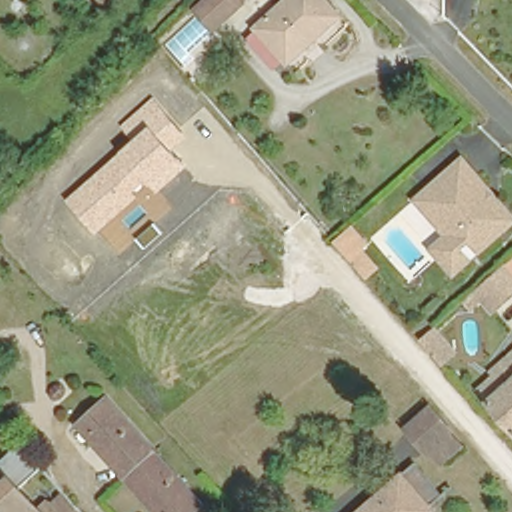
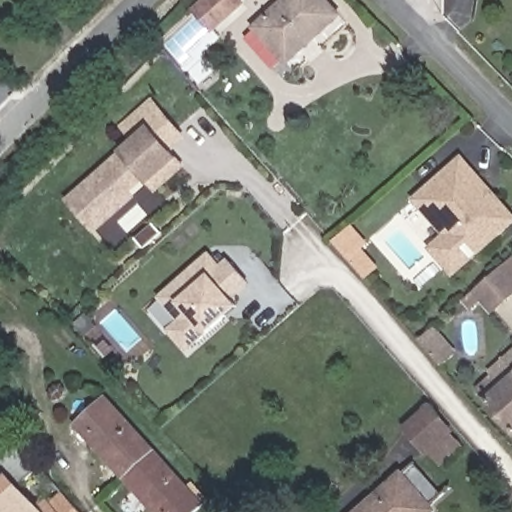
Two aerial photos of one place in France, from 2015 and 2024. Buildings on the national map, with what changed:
unchanged [(199,0),(236,0),(209,23),(192,6),(199,0)]
unchanged [(251,25),(249,24),(277,0),(328,0),(337,11),(281,59),(277,54),(266,63),(239,36),(251,25)]
unchanged [(95,235),(65,200),(121,151),(132,141),(119,126),(150,98),(186,137),(173,151),(180,160),(185,167),(156,193),(150,186),(147,182),(133,192),(138,197),(95,235)]
unchanged [(509,224),(446,278),(420,249),(437,234),(419,215),(408,202),(418,194),(454,162),(509,224)]
unchanged [(350,223),(371,242),(366,247),(383,267),(367,280),(331,240),(350,223)]
new [(234,302),(238,307),(205,336),(186,353),(167,330),(177,321),(157,297),(209,251),(221,264),(228,258),(252,285),(234,302)]
unchanged [(500,262),(512,275),(512,285),(490,304),(474,285),(500,262)]
new [(434,331),(455,354),(442,365),(421,342),(434,331)]
unchanged [(509,351),(512,354),(512,414),(492,390),(486,382),(483,379),(500,365),(497,361),(509,351)]
unchanged [(87,433),(76,420),(84,413),(111,392),(158,449),(128,473),(124,476),(92,439),(87,433)]
unchanged [(408,431),(401,423),(419,410),(427,403),(433,411),(439,418),(449,430),(455,437),(459,442),(435,461),(424,449),(408,431)]
unchanged [(0,512),(0,456),(14,443),(39,469),(20,487),(39,505),(29,512),(0,512)]
unchanged [(128,473),(158,449),(190,486),(205,504),(193,512),(154,512),(153,511),(124,476),(128,473)]
unchanged [(432,495),(422,504),(424,507),(418,512),(349,512),(407,463),(432,495)]
unchanged [(61,488),(88,512),(29,512),(39,505),(61,488)]

